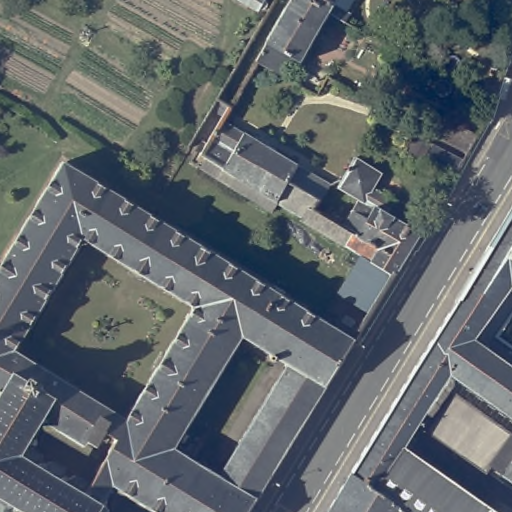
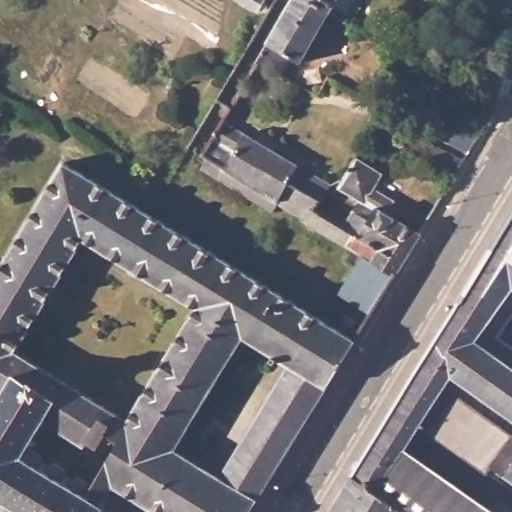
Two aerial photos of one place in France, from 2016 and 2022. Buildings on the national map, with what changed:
unchanged [(293,50),(282,69),(258,55),(292,0),(316,0),(331,9),(302,55),(293,50)]
unchanged [(345,17),(331,9),(316,0),(352,0),(348,7),(350,8),(345,17)]
unchanged [(474,0),(471,3),(467,0),(474,0)]
unchanged [(484,35),(489,25),(512,37),(512,43),(507,61),(495,56),(484,35)]
unchanged [(480,95),(483,79),(500,85),(495,104),(480,95)]
unchanged [(292,186),(283,201),(208,153),(228,119),(335,184),(323,204),(292,186)]
unchanged [(440,138),(449,121),(479,137),(469,153),(440,138)]
unchanged [(430,164),(427,156),(434,143),(465,160),(454,177),(430,164)]
unchanged [(313,220),(323,204),(334,211),(353,176),(363,159),(387,174),(378,188),(397,201),(392,212),(425,233),(400,275),(313,220)]
unchanged [(63,162),(354,341),(326,387),(288,365),(241,337),(173,448),(219,477),(257,500),(250,512),(154,512),(111,485),(101,502),(106,506),(104,510),(98,506),(94,512),(11,512),(2,508),(0,510),(0,439),(29,457),(35,450),(35,456),(41,461),(48,459),(57,465),(59,472),(66,477),(72,473),(80,479),(81,486),(84,487),(115,439),(92,424),(80,442),(51,423),(64,400),(13,369),(0,388),(0,264),(63,162)]
unchanged [(419,424),(403,449),(493,512),(404,512),(352,475),(512,214),(512,290),(476,340),(512,366),(512,480),(503,474),(498,480),(419,424)]
unchanged [(512,346),(512,366),(476,340),(512,290),(512,319),(499,337),(512,346)]
unchanged [(257,500),(219,477),(288,365),(326,387),(257,500)]
unchanged [(13,369),(64,400),(51,423),(44,419),(42,421),(37,418),(27,434),(31,437),(29,442),(24,439),(20,446),(27,445),(35,450),(29,457),(0,439),(0,388),(13,369)]
unchanged [(352,475),(404,512),(330,512),(352,475)]

